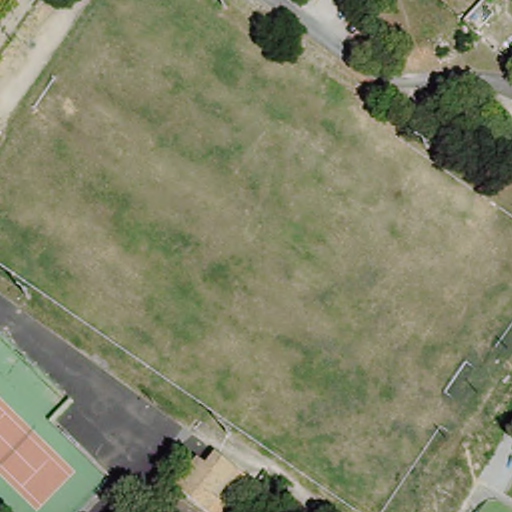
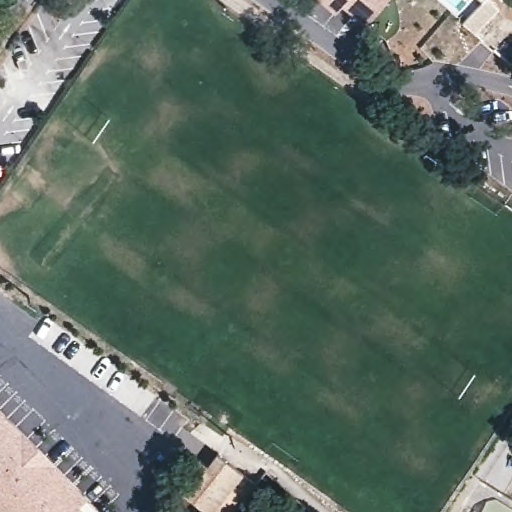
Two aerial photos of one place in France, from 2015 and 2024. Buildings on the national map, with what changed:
new [(340,5),(333,13),(317,0),(387,0),(366,25),(340,5)]
new [(475,33),(462,22),(481,2),(479,0),(487,0),(498,9),(475,33)]
new [(96,512),(0,512),(0,411),(99,509),(96,512)]
unchanged [(212,512),(204,512),(178,490),(190,475),(200,462),(209,468),(217,457),(241,475),(212,512)]

